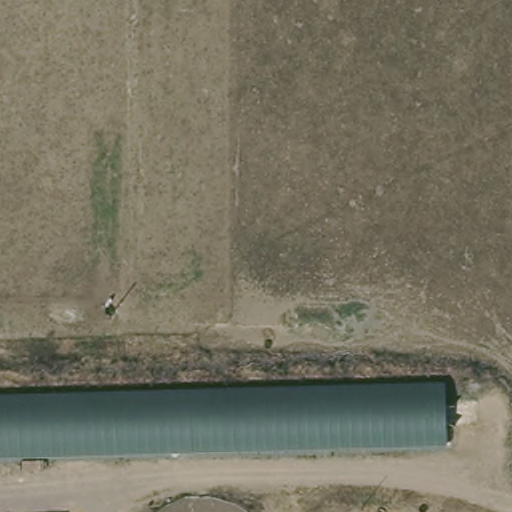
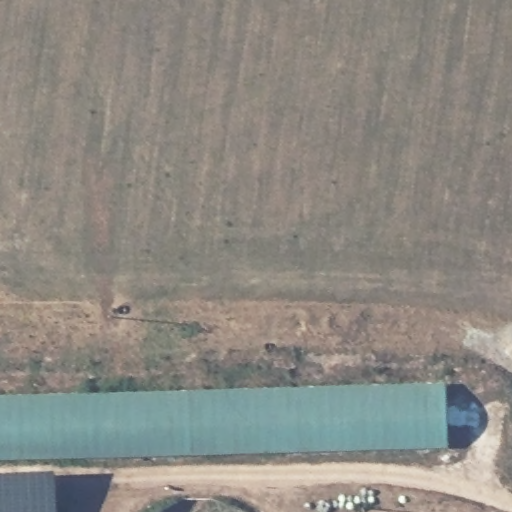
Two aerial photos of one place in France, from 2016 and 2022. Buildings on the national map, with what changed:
unchanged [(445,382),(446,443),(0,457),(0,395),(445,382)]
new [(58,512),(0,512),(0,469),(52,466),(58,512)]

